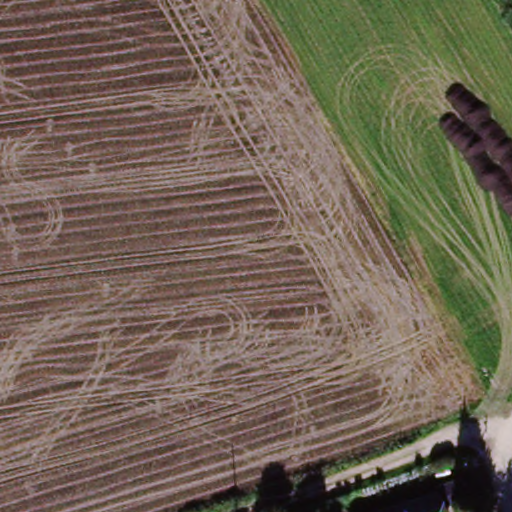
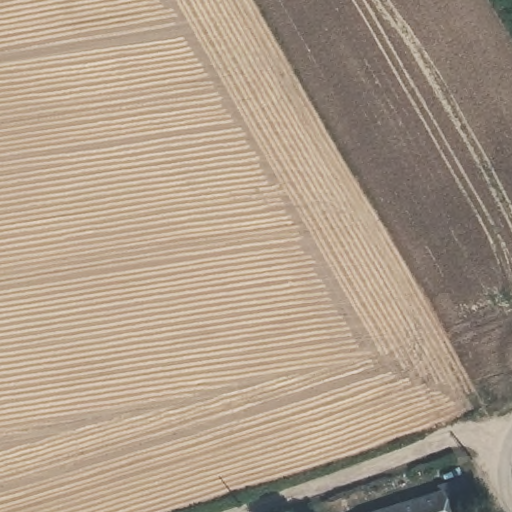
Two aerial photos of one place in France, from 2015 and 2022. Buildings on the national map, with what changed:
unchanged [(436,498),(441,512),(389,512),(436,498)]

